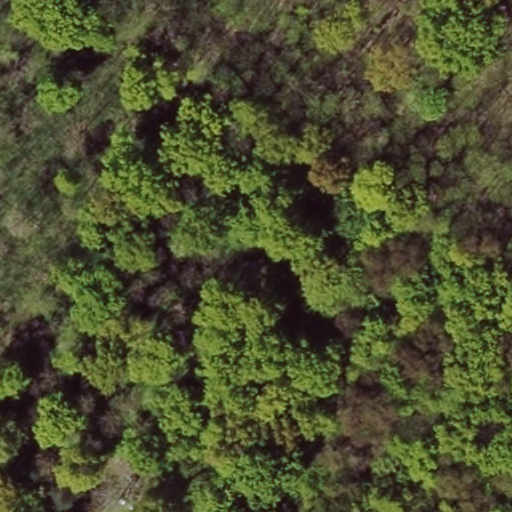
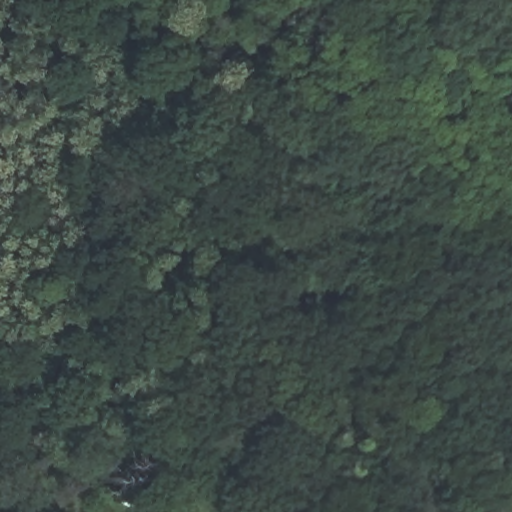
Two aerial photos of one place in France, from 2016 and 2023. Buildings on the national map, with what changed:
unchanged [(154,512),(133,512),(137,503),(154,512)]

